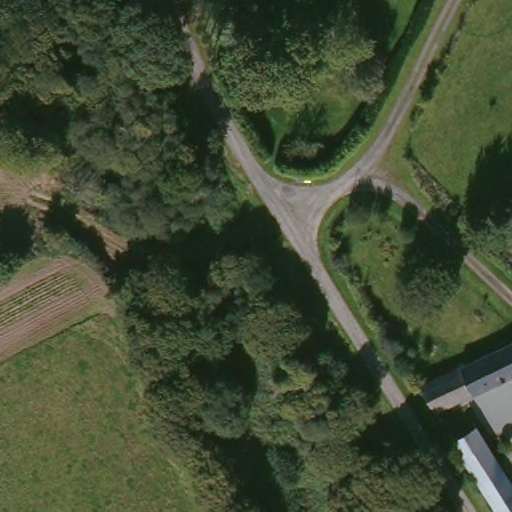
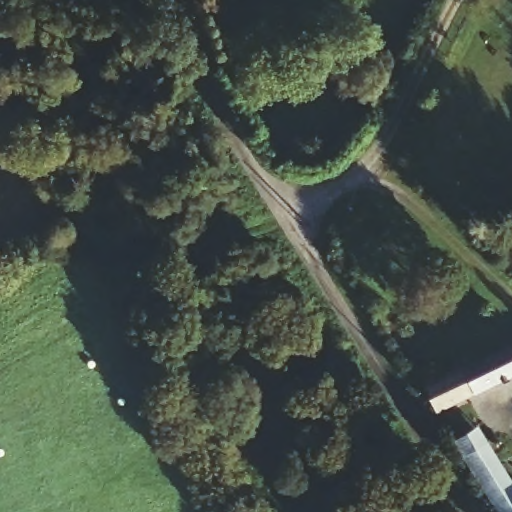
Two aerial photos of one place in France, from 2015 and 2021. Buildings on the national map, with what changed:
unchanged [(433,410),(420,384),(512,339),(512,371),(433,410)]
unchanged [(462,421),(512,500),(512,512),(488,512),(441,436),(462,421)]

